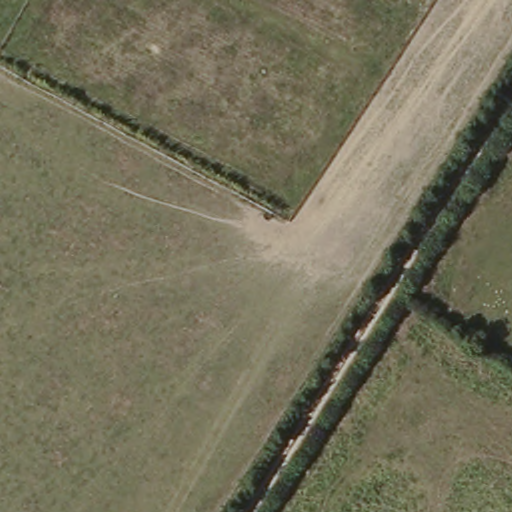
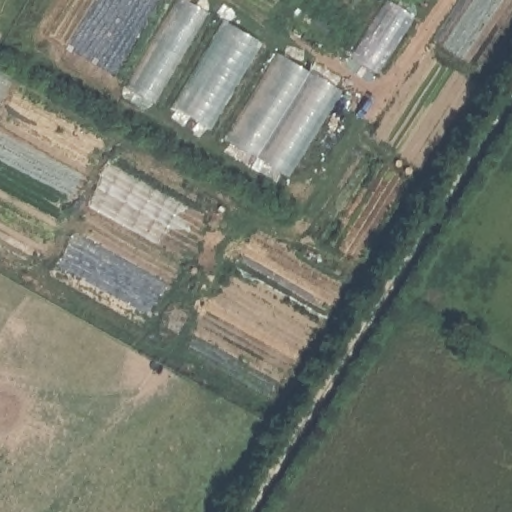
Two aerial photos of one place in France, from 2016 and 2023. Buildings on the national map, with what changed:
new [(285,179),(128,87),(178,0),(181,0),(340,90),(285,179)]

